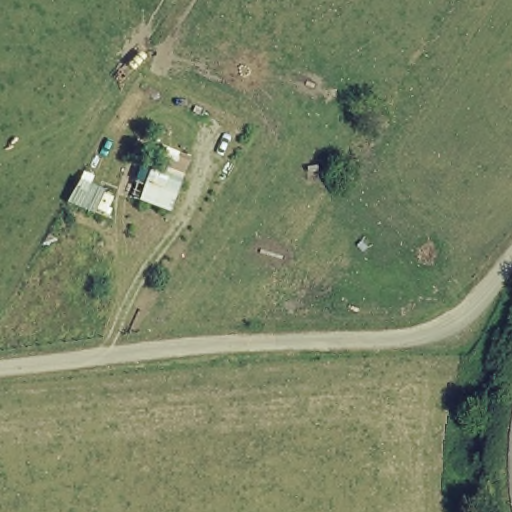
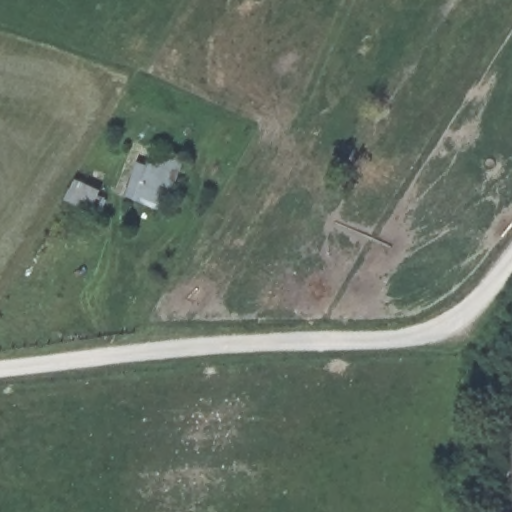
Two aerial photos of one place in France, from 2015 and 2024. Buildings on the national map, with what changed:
unchanged [(168,211),(135,203),(152,149),(184,156),(168,211)]

